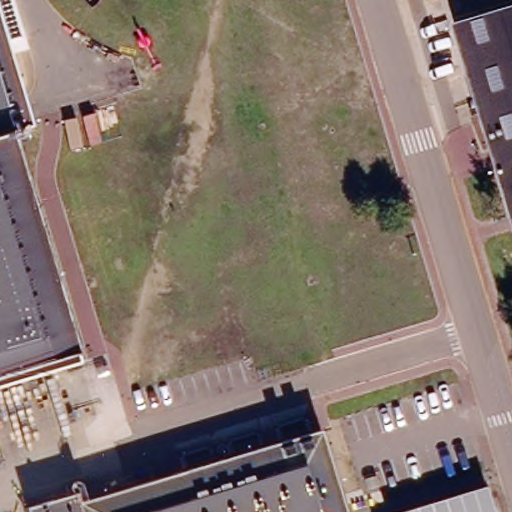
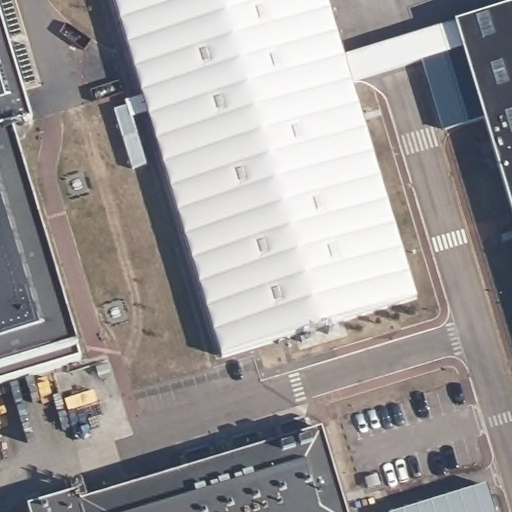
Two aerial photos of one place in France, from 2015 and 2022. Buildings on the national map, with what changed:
new [(221,355),(114,0),(327,0),(417,298),(221,355)]
unchanged [(497,167),(483,120),(455,22),(512,5),(512,215),(497,167)]
unchanged [(22,100),(28,124),(10,130),(75,352),(0,374),(0,29),(18,89),(22,100)]
new [(483,120),(444,129),(424,62),(462,45),(483,120)]
demolished [(395,386),(420,472),(377,485),(352,400),(395,386)]
unchanged [(28,508),(77,493),(80,504),(318,431),(343,512),(30,512),(28,508)]
unchanged [(492,512),(386,512),(383,502),(480,471),(492,512)]

